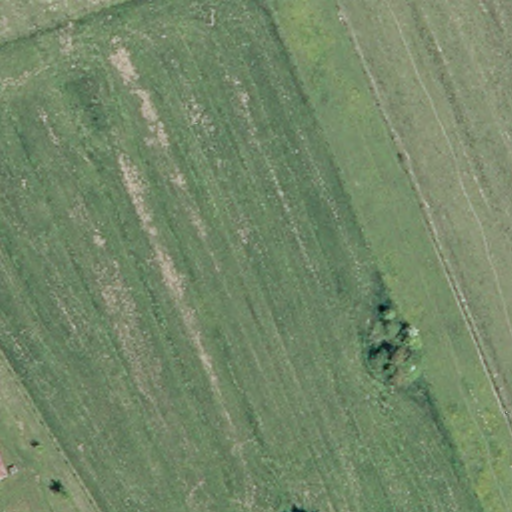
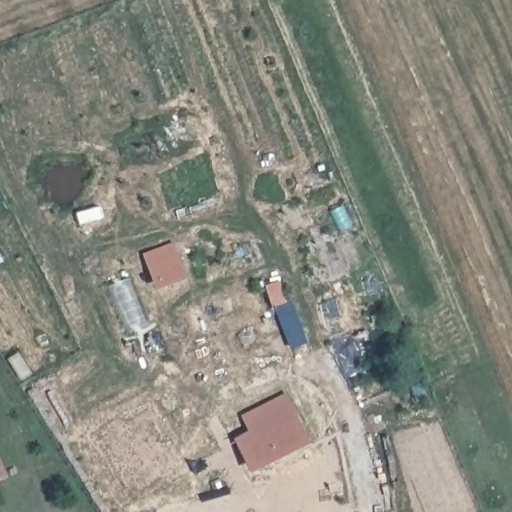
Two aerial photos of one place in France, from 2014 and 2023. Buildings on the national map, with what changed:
new [(286,392),(309,443),(251,473),(233,438),(248,430),(241,416),(286,392)]
unchanged [(0,484),(0,460),(8,481),(0,484)]

